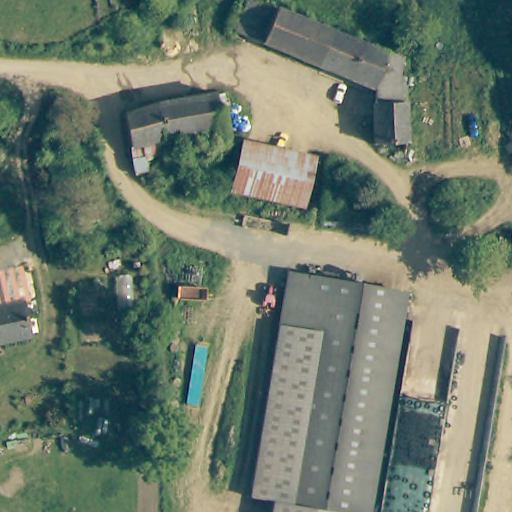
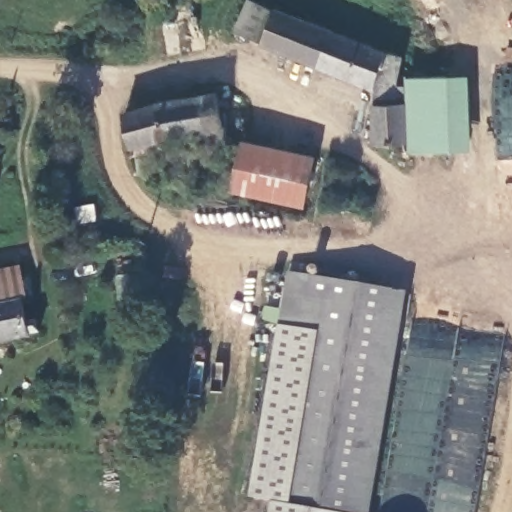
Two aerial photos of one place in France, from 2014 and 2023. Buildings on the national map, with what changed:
unchanged [(273,12),(258,46),(227,34),(242,0),(273,12)]
unchanged [(396,92),(403,92),(405,143),(372,145),(371,90),(258,46),(273,12),(315,29),(405,65),(396,92)]
new [(472,150),(410,152),(410,142),(405,143),(403,92),(396,92),(398,85),(407,85),(407,77),(471,75),(472,150)]
unchanged [(157,130),(122,139),(121,110),(155,98),(202,91),(225,92),(224,114),(214,115),(217,139),(159,146),(157,130)]
unchanged [(285,153),(313,157),(301,207),(226,194),(236,148),(238,142),(263,148),(285,153)]
demolished [(135,146),(136,150),(136,160),(116,162),(114,147),(135,146)]
unchanged [(0,309),(0,270),(21,266),(30,300),(15,305),(0,309)]
unchanged [(271,500),(250,497),(286,275),(385,287),(349,511),(271,500)]
unchanged [(404,290),(368,512),(357,512),(349,511),(385,287),(404,290)]
unchanged [(23,343),(0,348),(0,309),(15,305),(23,343)]
unchanged [(349,512),(269,512),(271,500),(349,511),(349,512)]
unchanged [(357,512),(349,512),(349,511),(357,512)]

